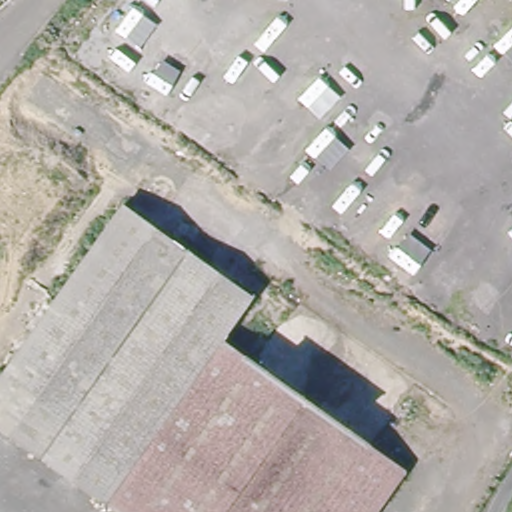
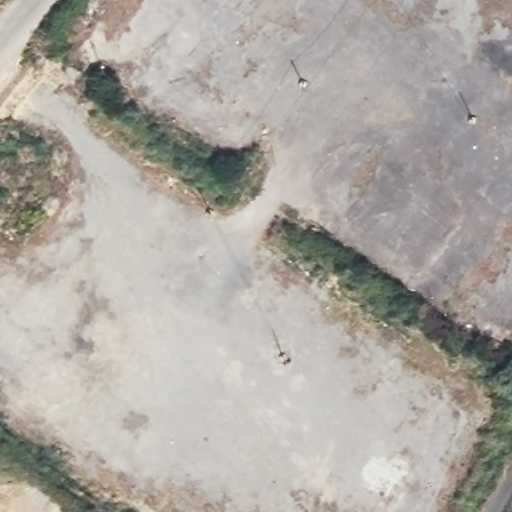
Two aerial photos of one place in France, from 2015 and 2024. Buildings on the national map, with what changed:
demolished [(0,420),(0,383),(122,204),(252,295),(224,337),(408,466),(376,512),(126,512),(114,503),(0,420)]

